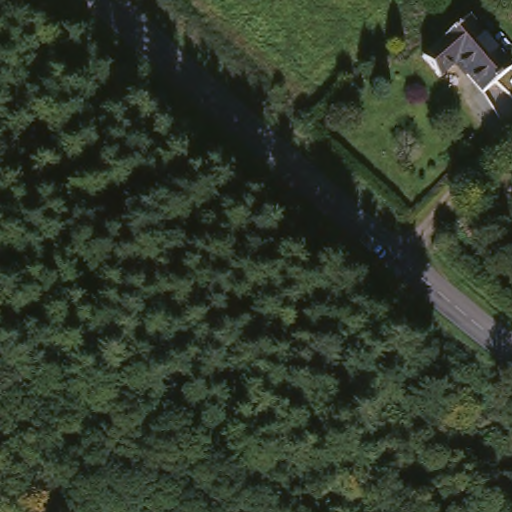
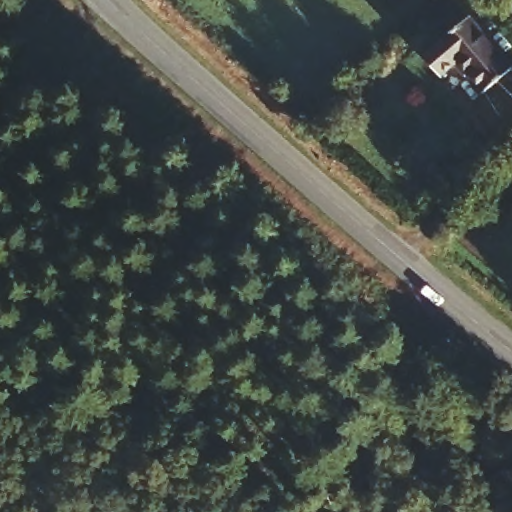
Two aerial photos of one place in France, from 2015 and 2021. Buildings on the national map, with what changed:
unchanged [(456,66),(436,80),(421,59),(470,21),(511,75),(479,99),(456,66)]

